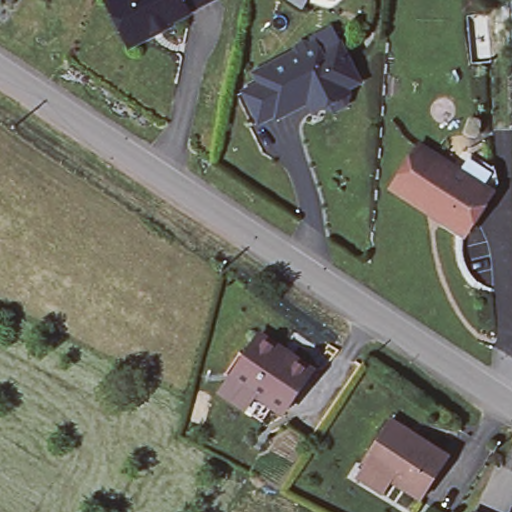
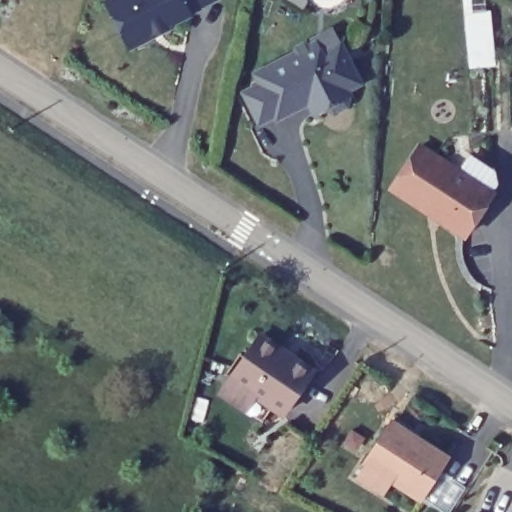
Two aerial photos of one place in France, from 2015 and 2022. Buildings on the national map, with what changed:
unchanged [(188,13),(170,21),(171,24),(129,45),(106,0),(208,0),(187,10),(188,13)]
new [(466,0),(473,0),(475,14),(492,11),(496,67),(471,69),(466,0)]
unchanged [(270,114),(255,121),(240,91),(255,83),(251,73),(258,69),(290,52),(292,46),(300,43),(305,44),(311,42),(308,38),(328,28),(335,43),(351,74),(355,81),(345,91),(340,104),(330,109),(318,106),(309,110),(305,101),(285,110),(272,116),(270,114)]
unchanged [(453,168),(465,150),(495,169),(498,183),(465,235),(393,188),(420,146),(453,168)]
unchanged [(225,393),(235,379),(263,335),(315,369),(287,413),(276,406),(267,421),(225,393)]
unchanged [(356,477),(365,464),(362,462),(390,419),(447,456),(420,499),(390,480),(382,493),(356,477)]

